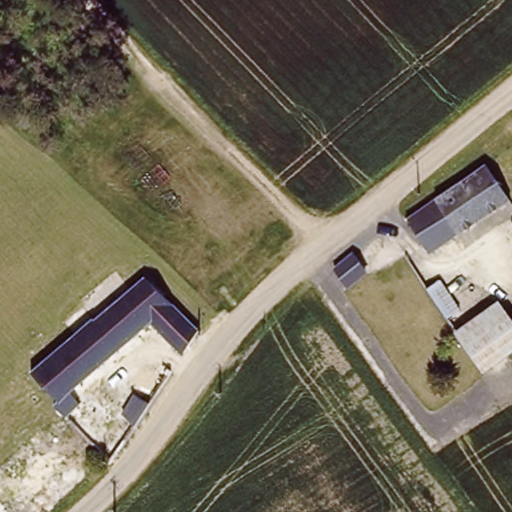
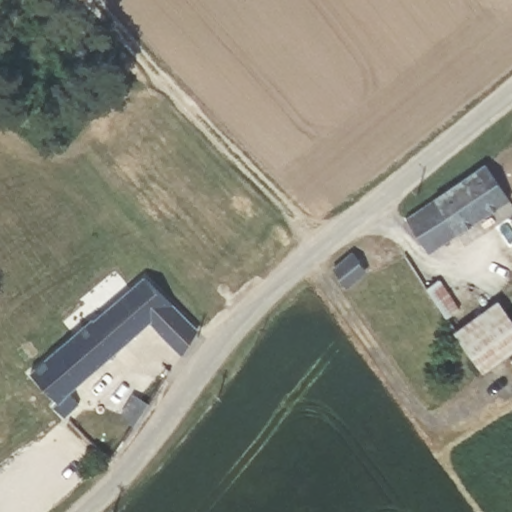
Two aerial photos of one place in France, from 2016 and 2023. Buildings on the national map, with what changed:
unchanged [(433,256),(407,222),(485,166),(509,199),(433,256)]
unchanged [(512,221),(512,226),(509,223),(512,221)]
unchanged [(362,281),(350,292),(334,268),(352,253),(363,266),(355,273),(362,281)]
unchanged [(466,321),(454,329),(409,271),(420,262),(466,321)]
unchanged [(151,326),(69,391),(79,403),(62,417),(51,406),(56,402),(33,372),(146,282),(199,332),(182,357),(151,326)]
unchanged [(466,321),(493,302),(512,327),(512,350),(484,369),(454,329),(466,321)]
unchanged [(129,424),(117,416),(142,378),(154,386),(129,424)]

